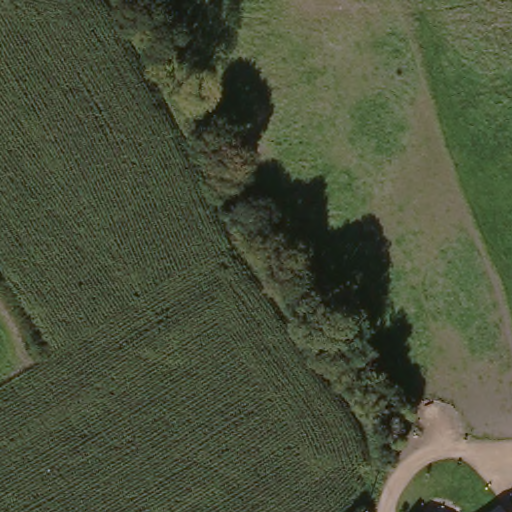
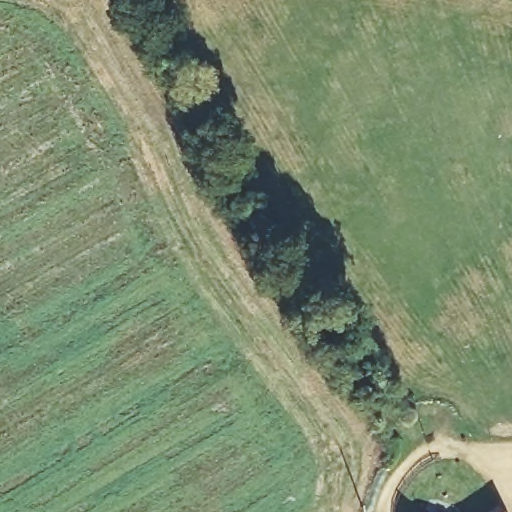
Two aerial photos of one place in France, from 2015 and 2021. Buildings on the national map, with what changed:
unchanged [(505,512),(481,512),(497,499),(505,512)]

